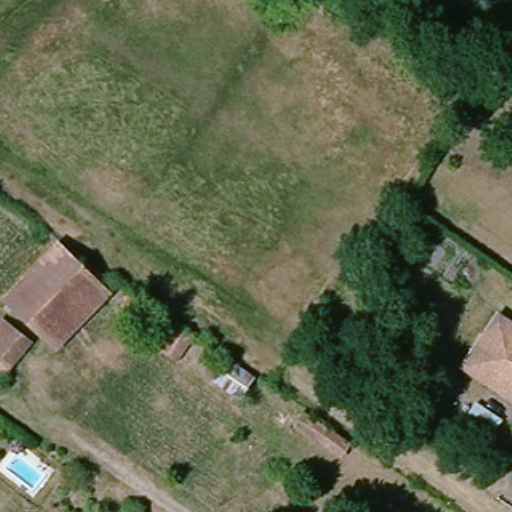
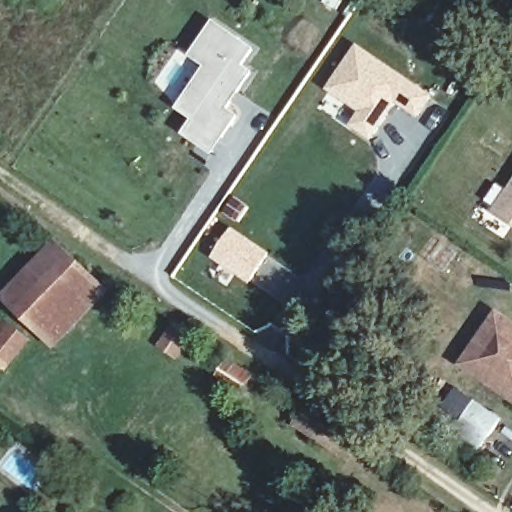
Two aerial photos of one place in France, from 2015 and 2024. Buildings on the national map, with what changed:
new [(204,67),(189,56),(215,20),(257,48),(245,65),(252,71),(228,107),(239,116),(212,155),(182,134),(191,120),(176,109),(204,67)]
new [(357,43),(433,96),(418,118),(406,109),(409,105),(401,99),(395,107),(386,101),(362,135),(349,127),(358,112),(326,90),(357,43)]
new [(512,194),(512,227),(497,216),(512,194)]
new [(232,228),(269,254),(249,284),(212,258),(232,228)]
unchanged [(105,289),(51,344),(0,296),(0,293),(55,238),(105,289)]
unchanged [(512,326),(512,384),(510,387),(461,354),(490,311),(512,326)]
unchanged [(30,342),(6,373),(0,369),(0,324),(2,320),(30,342)]
unchanged [(461,354),(510,387),(512,384),(512,401),(456,362),(461,354)]
new [(502,418),(479,449),(453,431),(462,419),(443,406),(457,386),(502,418)]
unchanged [(351,439),(337,460),(289,426),(300,408),(351,439)]

